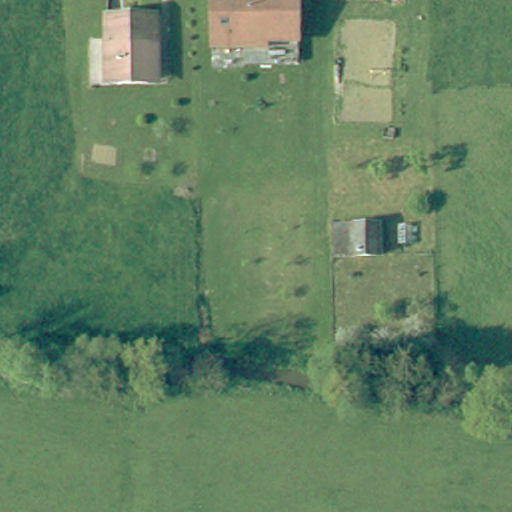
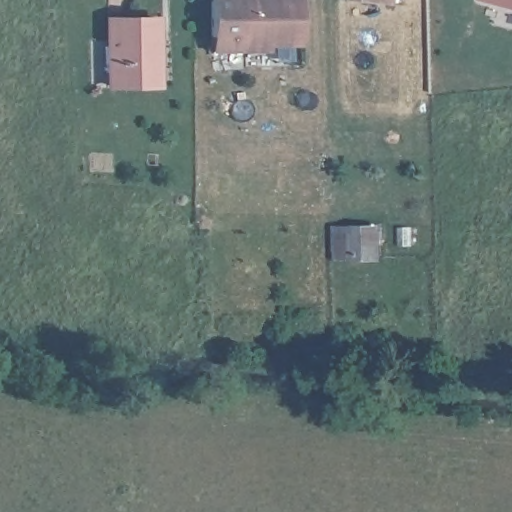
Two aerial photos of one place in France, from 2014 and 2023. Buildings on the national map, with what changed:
unchanged [(301,49),(269,48),(269,55),(242,55),(242,42),(211,41),(210,0),(301,0),(301,49)]
unchanged [(406,4),(361,0),(406,0),(406,4)]
new [(485,0),(512,0),(512,7),(485,0)]
unchanged [(142,83),(102,84),(102,16),(151,16),(151,43),(151,83),(142,83)]
unchanged [(382,223),(382,263),(332,263),(335,223),(382,223)]

